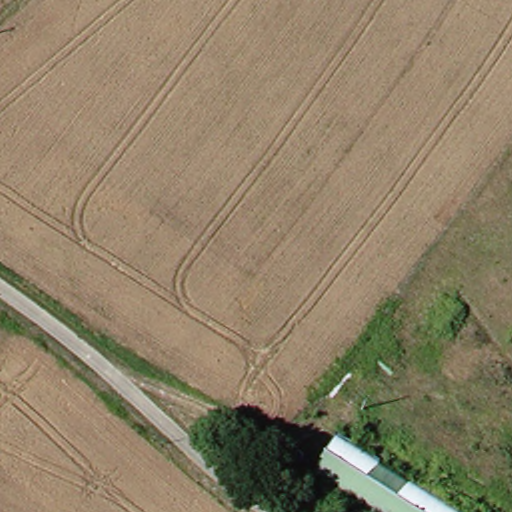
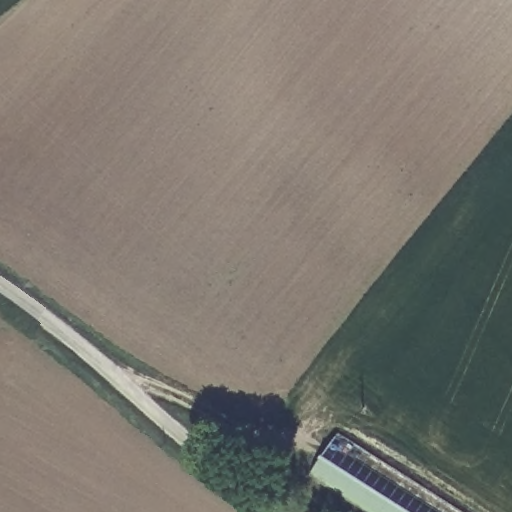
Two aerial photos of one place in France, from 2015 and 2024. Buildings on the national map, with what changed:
unchanged [(461,512),(384,512),(318,469),(343,439),(461,512)]

